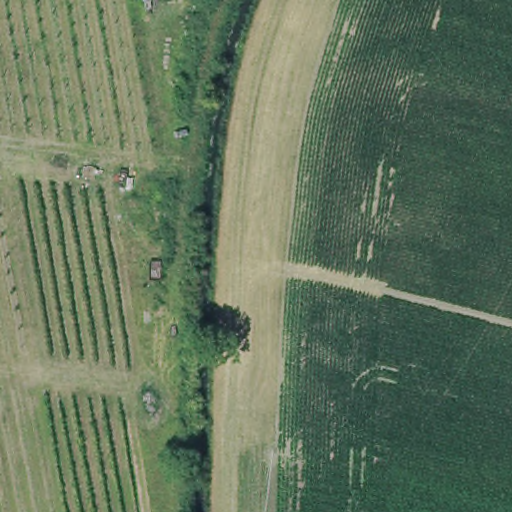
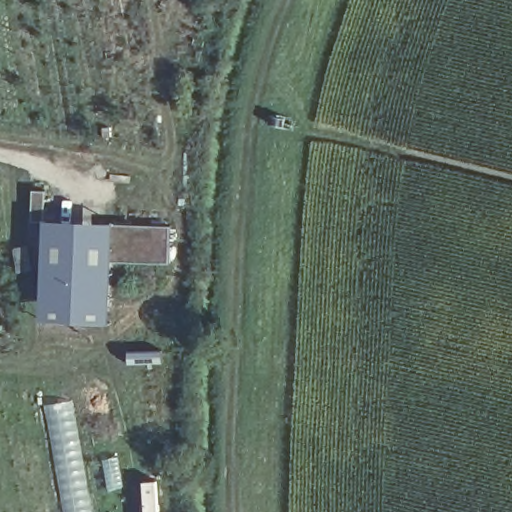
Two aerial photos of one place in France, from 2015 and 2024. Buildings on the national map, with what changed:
new [(165,225),(164,262),(106,260),(103,321),(34,317),(38,219),(165,225)]

